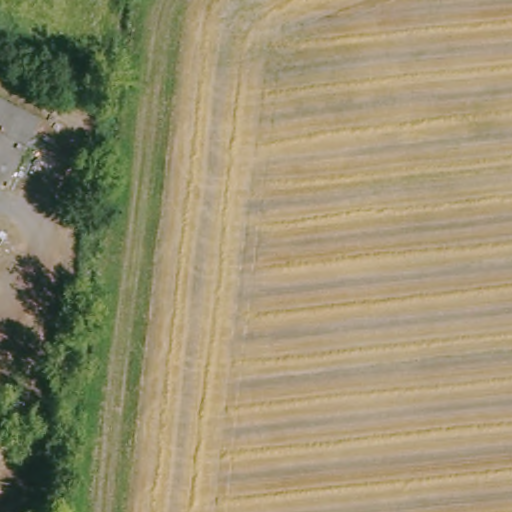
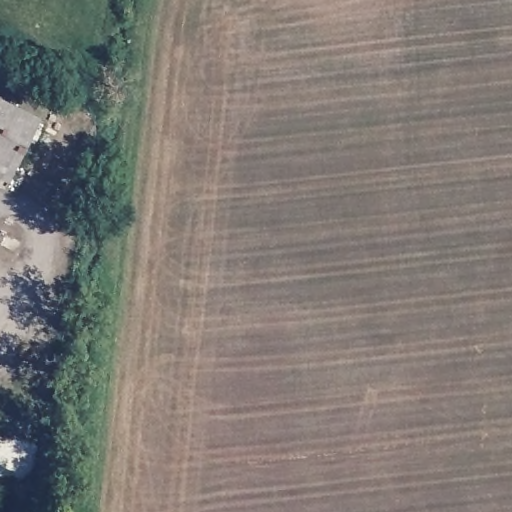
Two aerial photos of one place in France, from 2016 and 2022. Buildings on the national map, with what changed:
unchanged [(14,184),(0,176),(0,107),(43,129),(14,184)]

